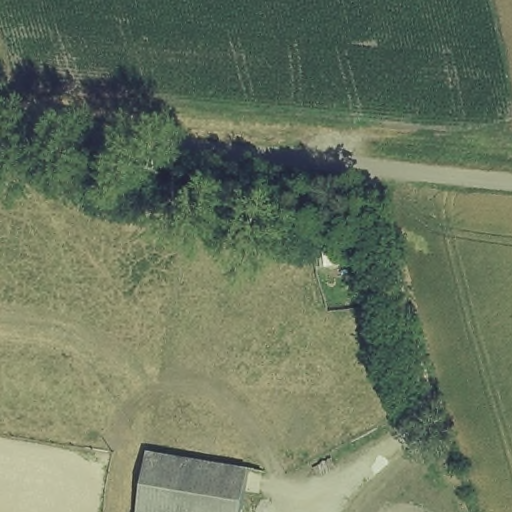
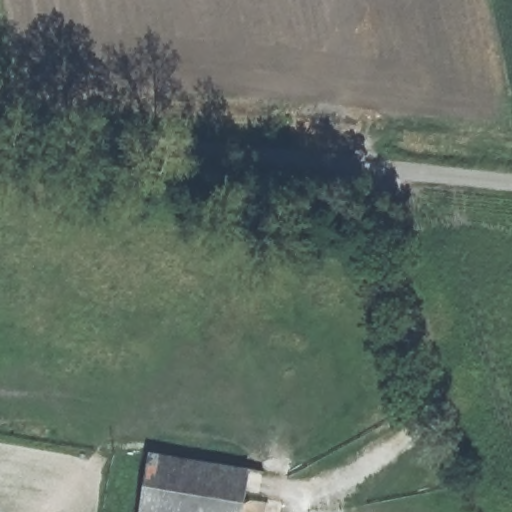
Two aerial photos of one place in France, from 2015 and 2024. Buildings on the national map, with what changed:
unchanged [(245,512),(145,512),(156,457),(252,471),(245,512)]

